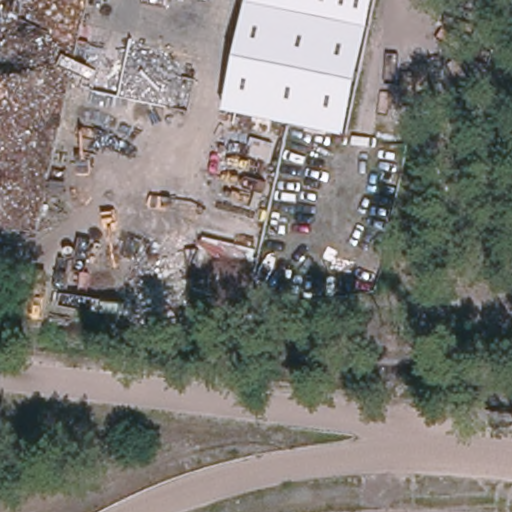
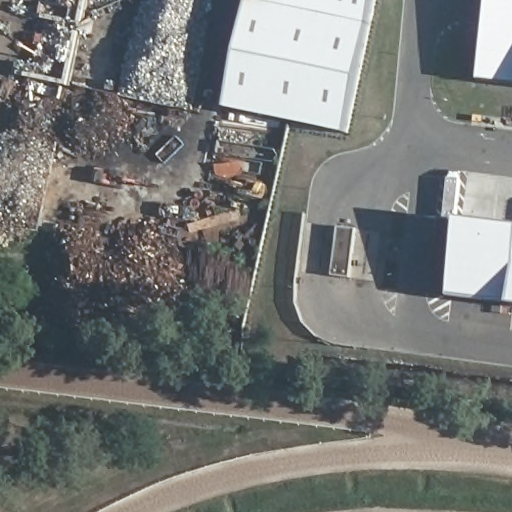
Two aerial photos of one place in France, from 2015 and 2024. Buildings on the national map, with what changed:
unchanged [(346,134),(225,109),(247,0),(248,0),(374,0),(369,25),(346,134)]
new [(489,0),(512,0),(512,83),(479,78),(489,0)]
new [(460,219),(512,226),(512,304),(449,296),(460,219)]
new [(338,226),(356,229),(350,278),(331,276),(338,226)]

